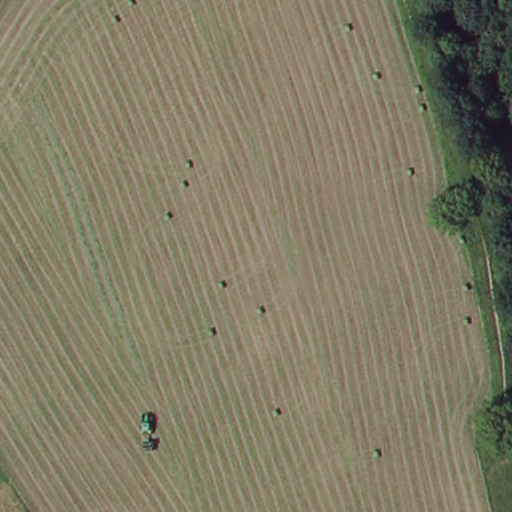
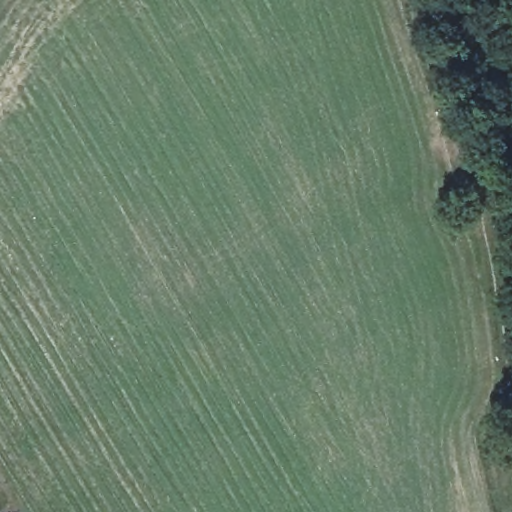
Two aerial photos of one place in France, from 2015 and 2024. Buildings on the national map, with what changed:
[]

